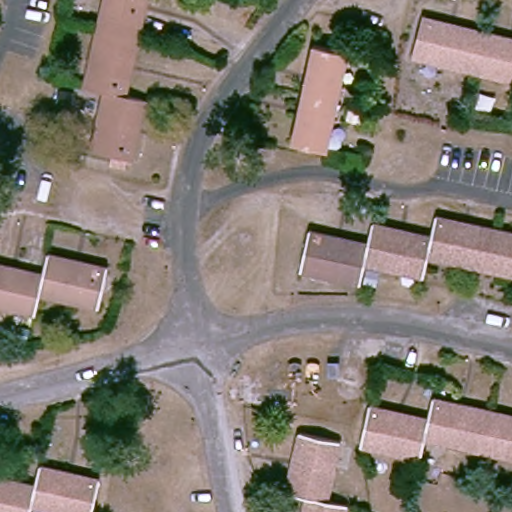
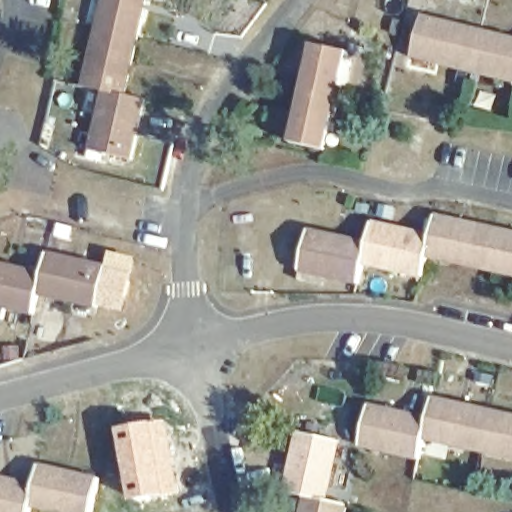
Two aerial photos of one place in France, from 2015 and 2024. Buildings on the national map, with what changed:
unchanged [(148,0),(139,36),(98,25),(105,0),(148,0)]
unchanged [(425,61),(435,22),(493,35),(483,74),(425,61)]
unchanged [(124,95),(108,91),(83,85),(98,25),(139,36),(124,95)]
unchanged [(493,35),(512,40),(512,82),(483,74),(493,35)]
unchanged [(337,104),(303,94),(314,48),(348,56),(337,104)]
unchanged [(148,103),(132,164),(91,151),(108,91),(124,95),(148,103)]
unchanged [(337,104),(324,149),(292,140),(303,94),(337,104)]
unchanged [(434,242),(440,217),(500,233),(488,274),(429,259),(434,242)]
unchanged [(374,251),(381,227),(434,242),(429,259),(423,283),(369,269),(374,251)]
unchanged [(512,281),(488,274),(500,233),(512,236),(512,281)]
unchanged [(369,269),(363,290),(301,273),(311,234),(374,251),(369,269)]
unchanged [(46,275),(52,253),(112,268),(101,309),(40,294),(46,275)]
unchanged [(46,275),(40,294),(35,314),(0,305),(0,262),(46,275)]
unchanged [(435,398),(496,414),(484,454),(425,439),(429,421),(435,398)]
unchanged [(372,405),(429,421),(425,439),(419,460),(362,444),(372,405)]
unchanged [(512,462),(484,454),(496,414),(512,419),(512,462)]
new [(166,419),(179,492),(131,501),(117,429),(166,419)]
unchanged [(288,495),(303,439),(342,450),(327,505),(309,500),(288,495)]
unchanged [(93,512),(42,512),(33,510),(38,492),(44,470),(101,484),(93,512)]
unchanged [(33,510),(32,512),(0,512),(0,482),(38,492),(33,510)]
unchanged [(309,500),(327,505),(349,511),(349,512),(306,512),(309,500)]

